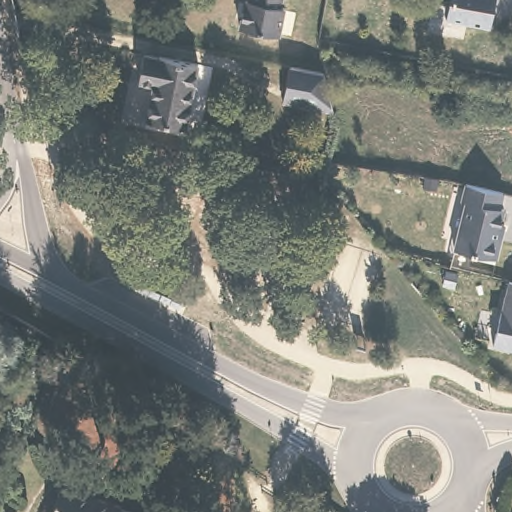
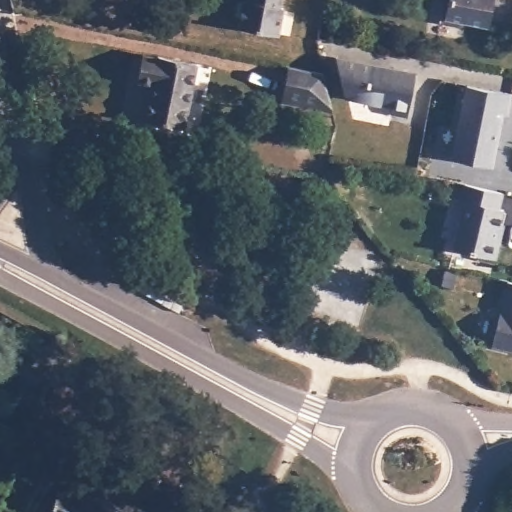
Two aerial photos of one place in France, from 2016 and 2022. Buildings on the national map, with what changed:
unchanged [(282,0),(280,9),(284,9),(279,37),(238,29),(244,1),(249,2),(250,0),(282,0)]
unchanged [(447,21),(451,0),(494,0),(488,29),(447,21)]
unchanged [(187,131),(150,124),(156,89),(141,87),(146,60),(161,62),(162,59),(198,66),(187,131)]
unchanged [(414,73),(407,115),(391,113),(392,104),(345,96),(338,59),(414,73)]
unchanged [(278,104),(279,97),(285,66),(320,72),(326,107),(327,113),(278,104)]
new [(505,114),(502,113),(491,167),(452,159),(467,85),(510,94),(505,114)]
unchanged [(500,237),(495,256),(453,246),(465,199),(461,197),(465,181),(503,190),(499,206),(503,207),(500,221),(504,222),(500,237)]
unchanged [(287,255),(284,265),(270,261),(273,251),(287,255)]
unchanged [(505,282),(512,284),(512,351),(487,345),(504,282),(505,282)]
unchanged [(121,508),(120,512),(53,512),(61,487),(62,487),(67,475),(68,470),(92,478),(90,483),(86,496),(121,508)]
new [(121,510),(128,512),(120,512),(121,510)]

